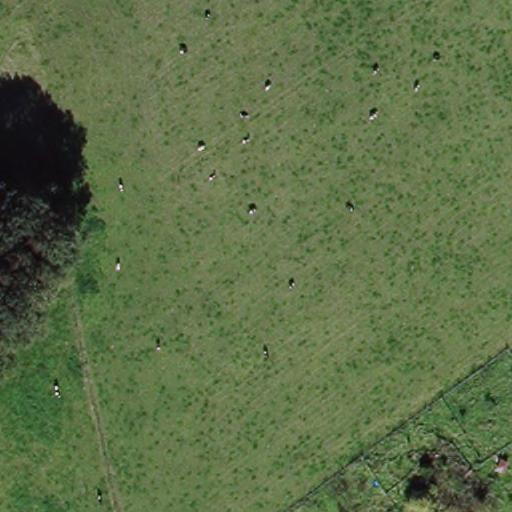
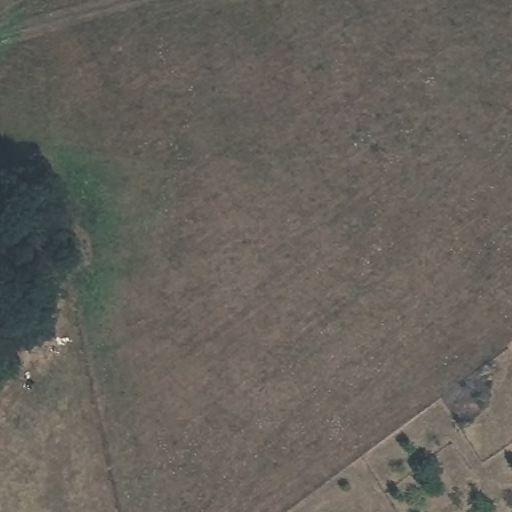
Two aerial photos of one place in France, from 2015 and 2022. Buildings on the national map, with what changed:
[]

